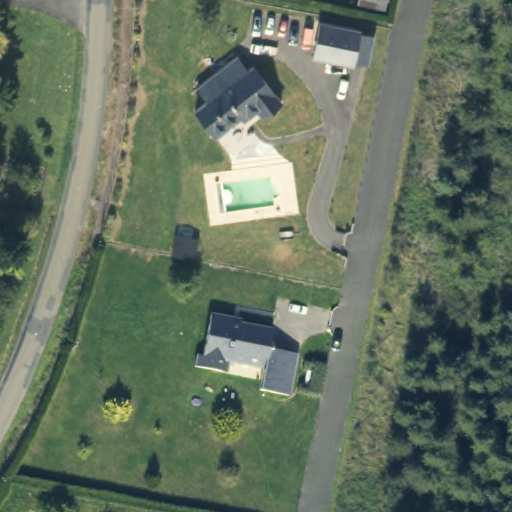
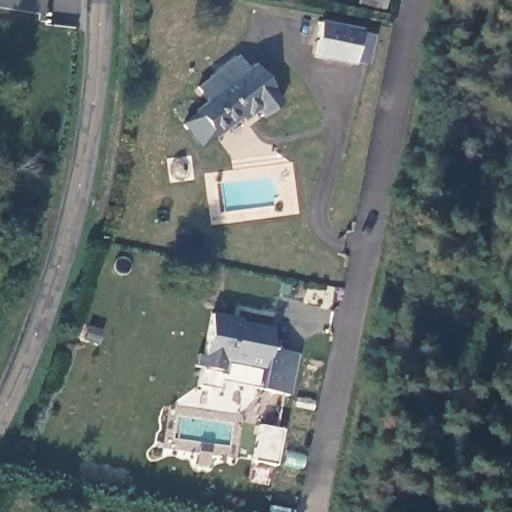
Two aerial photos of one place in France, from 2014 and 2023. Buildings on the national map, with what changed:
unchanged [(313,53),(320,18),(361,25),(360,32),(372,35),(366,62),(354,60),(313,53)]
unchanged [(256,110),(250,116),(245,111),(215,137),(194,110),(206,98),(196,86),(234,54),(247,69),(250,65),(277,100),(261,115),(256,110)]
unchanged [(211,314),(231,316),(236,320),(271,326),(268,346),(296,352),(292,395),(261,389),(264,368),(227,360),(223,373),(204,367),(211,314)]

